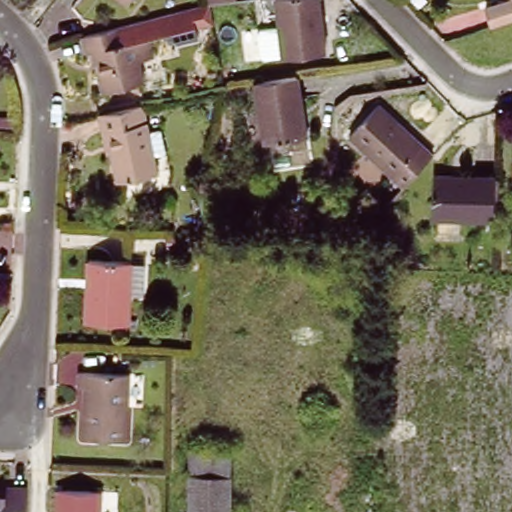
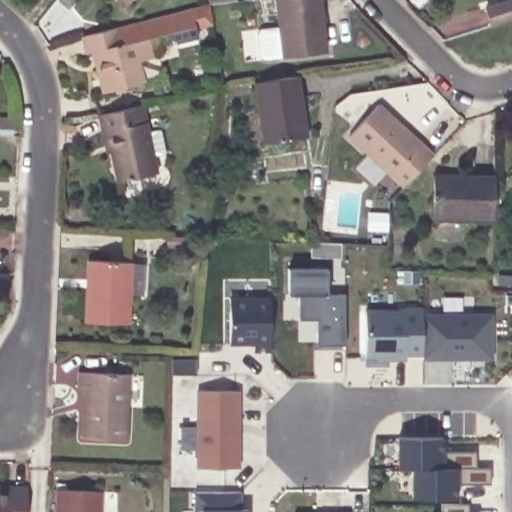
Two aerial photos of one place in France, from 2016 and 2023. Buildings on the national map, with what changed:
unchanged [(126,4),(121,0),(130,0),(126,4)]
unchanged [(209,0),(237,0),(237,1),(210,4),(209,0)]
unchanged [(324,52),(282,56),(277,0),(318,0),(324,52)]
unchanged [(504,0),(512,0),(512,21),(490,28),(483,7),(504,0)]
unchanged [(121,40),(137,37),(142,58),(127,62),(133,83),(91,93),(82,51),(76,53),(73,36),(118,24),(121,40)]
unchanged [(306,137),(265,143),(255,84),(297,77),(306,137)]
unchanged [(349,137),(378,105),(432,156),(403,187),(349,137)]
unchanged [(156,173),(119,182),(107,132),(103,133),(100,115),(141,106),(156,173)]
unchanged [(433,219),(435,176),(495,178),(493,220),(433,219)]
unchanged [(138,295),(125,295),(123,324),(80,322),(83,261),(139,264),(138,295)]
new [(317,345),(317,319),(300,319),(301,294),(287,294),(287,267),(328,268),(328,294),(345,293),(345,344),(317,345)]
new [(254,353),(255,344),(230,345),(229,295),(271,296),(272,352),(254,353)]
new [(423,361),(423,356),(406,356),(407,360),(380,361),(380,358),(365,358),(364,310),(402,309),(402,307),(423,307),(422,313),(492,313),(493,359),(423,361)]
unchanged [(82,437),(85,388),(78,388),(80,373),(128,374),(125,438),(82,437)]
new [(197,467),(197,389),(241,389),(242,467),(197,467)]
new [(459,484),(459,499),(411,499),(412,470),(396,469),(395,435),(445,436),(444,452),(477,451),(478,468),(490,469),(491,484),(459,484)]
unchanged [(0,512),(0,491),(3,491),(3,486),(28,488),(27,512),(0,512)]
unchanged [(58,512),(58,490),(100,491),(99,512),(58,512)]
new [(248,508),(248,512),(200,512),(200,508),(197,491),(240,491),(245,508),(248,508)]
demolished [(230,512),(189,512),(190,500),(230,501),(230,512)]
new [(470,504),(471,512),(444,512),(442,504),(470,504)]

